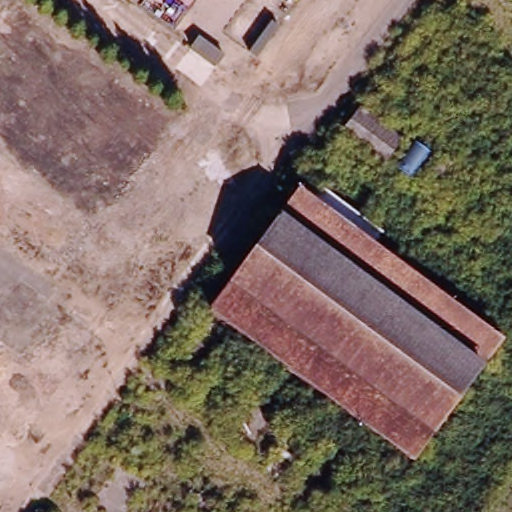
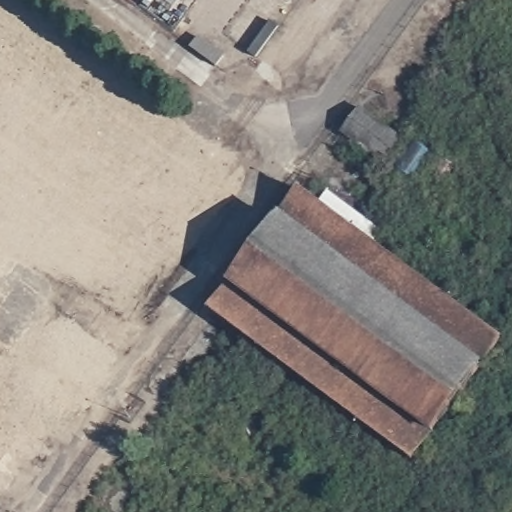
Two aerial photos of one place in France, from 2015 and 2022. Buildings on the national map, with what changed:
unchanged [(305,186),(503,341),(410,460),(214,302),(305,186)]

